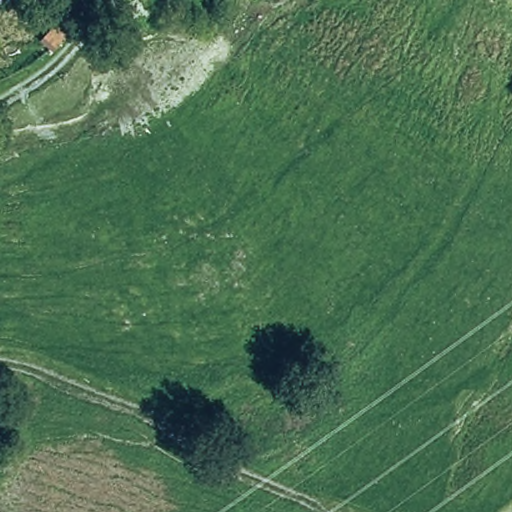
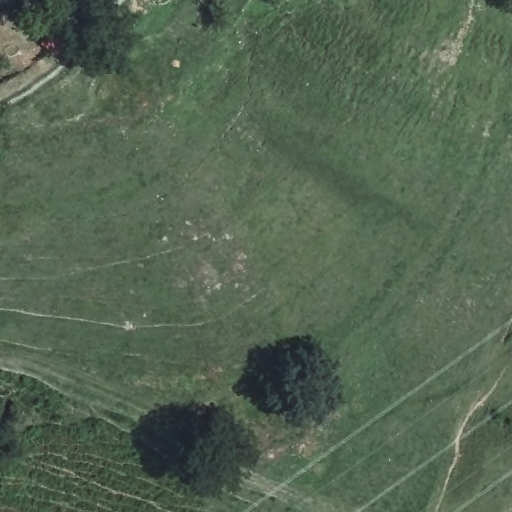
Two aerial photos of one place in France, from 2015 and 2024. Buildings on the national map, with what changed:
unchanged [(42,48),(58,27),(72,39),(58,58),(42,48)]

